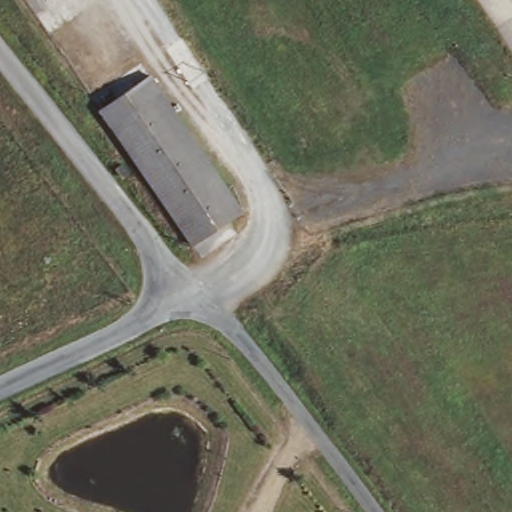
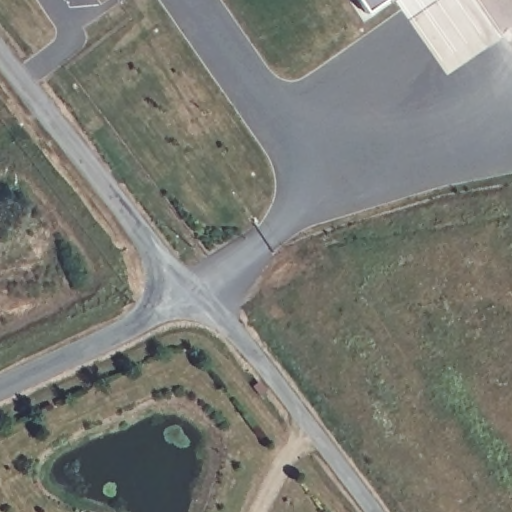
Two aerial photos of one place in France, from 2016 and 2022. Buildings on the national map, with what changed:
new [(365,15),(355,0),(386,0),(365,15)]
demolished [(148,70),(241,209),(190,241),(97,106),(148,70)]

